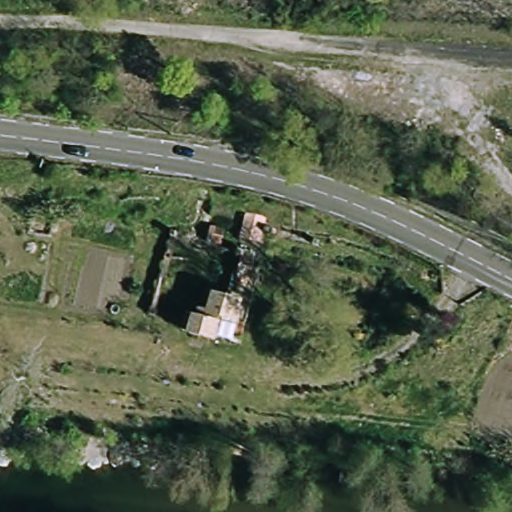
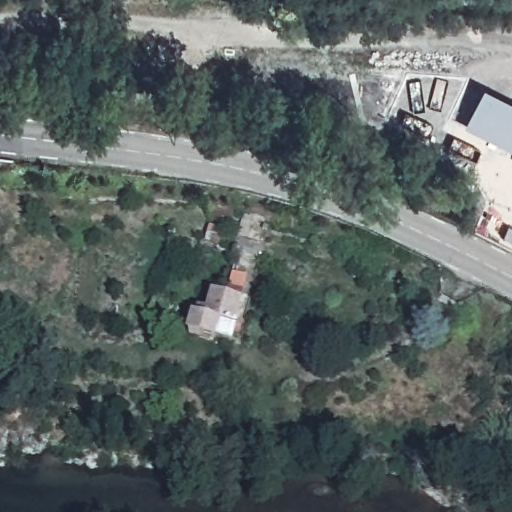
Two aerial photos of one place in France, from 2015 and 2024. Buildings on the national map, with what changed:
new [(464,126),(483,87),(512,103),(512,150),(464,126)]
unchanged [(201,310),(211,311),(217,292),(239,299),(233,340),(192,333),(201,310)]

